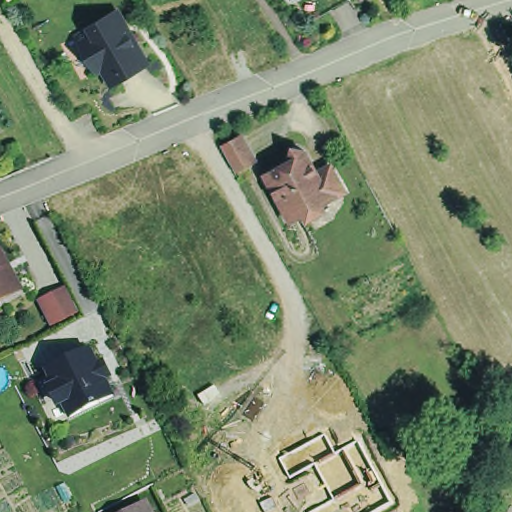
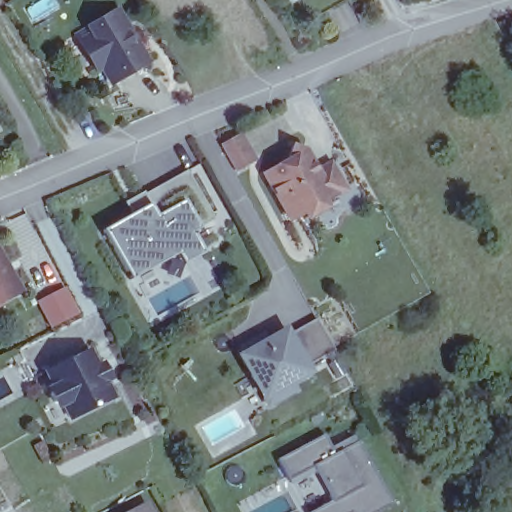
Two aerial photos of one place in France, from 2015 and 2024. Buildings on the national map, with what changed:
unchanged [(333,4),(332,4),(329,0),(339,0),(333,4)]
unchanged [(110,88),(101,70),(95,73),(73,33),(118,6),(153,63),(110,88)]
unchanged [(235,174),(220,144),(245,130),(260,160),(235,174)]
unchanged [(335,192),(332,194),(300,212),(290,218),(265,175),(275,169),(290,160),(288,156),(292,145),(304,149),(312,163),(317,172),(320,170),(330,165),(337,177),(342,189),(335,192)]
new [(129,207),(127,204),(144,194),(187,170),(215,219),(200,227),(200,228),(192,232),(199,245),(179,256),(177,254),(130,280),(129,279),(130,278),(103,230),(132,213),(129,207)]
unchanged [(0,305),(0,248),(25,291),(0,305)]
unchanged [(50,331),(35,301),(65,283),(82,312),(50,331)]
new [(267,340),(287,329),(289,333),(317,317),(335,350),(307,365),(310,371),(291,382),(295,388),(268,403),(252,373),(255,371),(241,346),(264,334),(267,340)]
unchanged [(109,405),(85,416),(70,423),(62,407),(60,408),(54,406),(50,397),(52,391),(54,390),(46,374),(60,367),(83,355),(89,352),(113,402),(109,405)]
new [(313,512),(333,501),(315,467),(290,480),(280,459),(325,435),(335,452),(358,440),(392,504),(378,512),(313,512)]
demolished [(247,477),(240,465),(262,453),(284,442),(285,445),(307,485),(285,496),(269,505),(256,512),(218,512),(195,466),(217,455),(232,485),(247,477)]
unchanged [(137,512),(145,507),(148,512),(137,512)]

